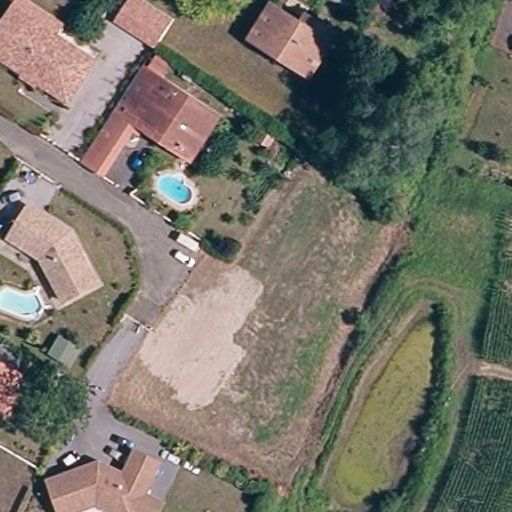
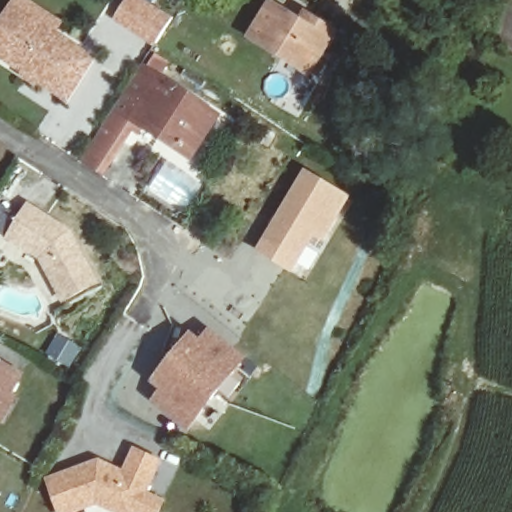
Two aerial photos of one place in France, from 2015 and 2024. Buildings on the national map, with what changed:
unchanged [(161,38),(156,45),(118,22),(123,14),(131,0),(137,0),(172,21),(161,38)]
unchanged [(0,45),(26,3),(68,29),(60,41),(31,23),(6,63),(0,60),(0,45)]
unchanged [(320,67),(293,51),(289,57),(260,39),(280,6),(309,23),(313,17),(340,34),(320,67)]
unchanged [(31,23),(60,41),(100,67),(74,107),(6,63),(31,23)]
unchanged [(188,153),(134,121),(101,174),(81,162),(142,67),(160,79),(156,84),(183,101),(187,94),(221,116),(208,136),(195,157),(188,153)]
new [(313,180),(342,198),(328,220),(337,226),(326,244),(317,238),(295,273),(266,254),(313,180)]
unchanged [(9,235),(20,218),(30,202),(71,228),(89,260),(100,280),(66,298),(43,256),(9,235)]
unchanged [(84,349),(71,365),(51,350),(63,334),(84,349)]
new [(159,385),(197,340),(206,347),(214,337),(222,344),(244,362),(235,372),(237,374),(199,418),(197,417),(188,427),(166,409),(159,402),(167,392),(159,385)]
unchanged [(18,387),(24,390),(8,416),(2,414),(0,418),(0,361),(25,375),(18,387)]
unchanged [(161,512),(141,512),(140,511),(139,512),(119,512),(100,503),(78,512),(62,512),(51,482),(101,462),(126,474),(137,450),(162,461),(148,494),(166,502),(161,512)]

